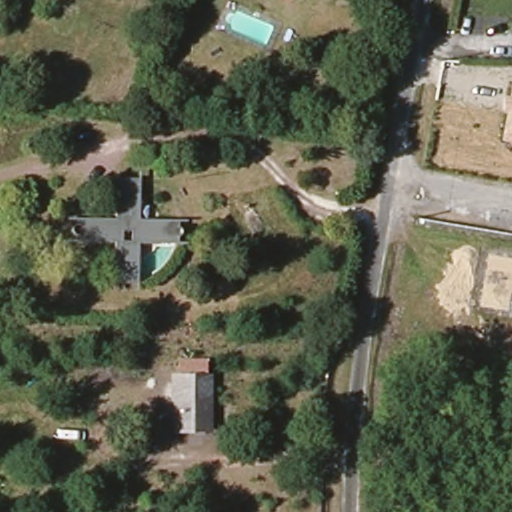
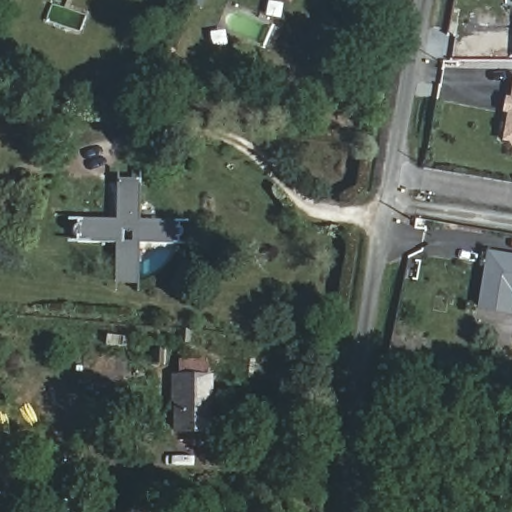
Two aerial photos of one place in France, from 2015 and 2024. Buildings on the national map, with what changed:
unchanged [(283,0),(288,0),(287,2),(283,0)]
unchanged [(511,148),(511,143),(502,142),(506,115),(500,114),(504,96),(509,97),(512,81),(512,149),(511,148)]
unchanged [(118,244),(67,242),(70,219),(118,223),(120,181),(142,183),(140,223),(189,227),(190,248),(140,244),(137,287),(117,285),(118,244)]
new [(477,311),(488,251),(512,255),(512,317),(477,311)]
unchanged [(207,374),(214,374),(210,434),(168,433),(171,374),(176,373),(176,357),(208,358),(207,374)]

